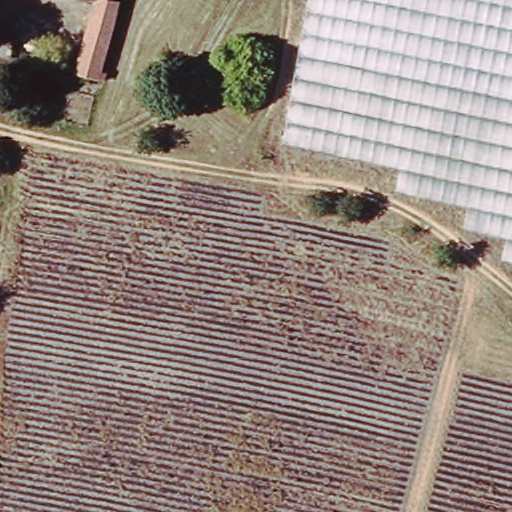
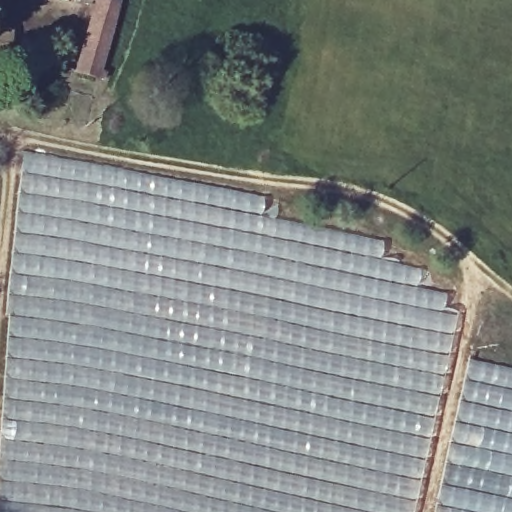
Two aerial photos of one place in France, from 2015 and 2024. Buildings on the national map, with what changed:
unchanged [(108,81),(85,77),(95,2),(85,0),(112,0),(122,2),(108,81)]
unchanged [(10,62),(0,60),(0,32),(15,34),(10,62)]
new [(4,304),(22,150),(103,163),(222,185),(267,197),(264,213),(385,240),(381,259),(422,267),(418,285),(447,292),(445,308),(458,311),(425,469),(418,507),(417,512),(0,512),(0,395),(3,341),(4,304)]

